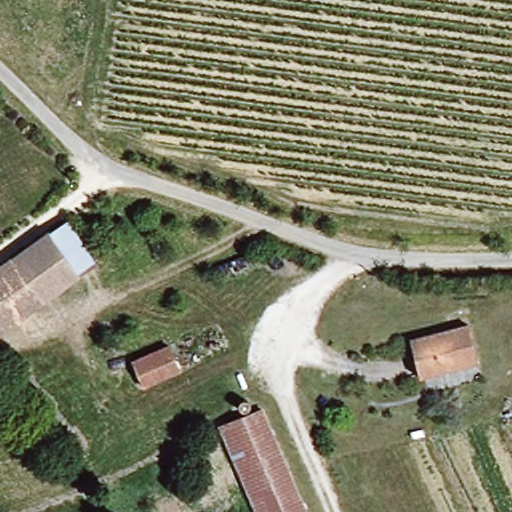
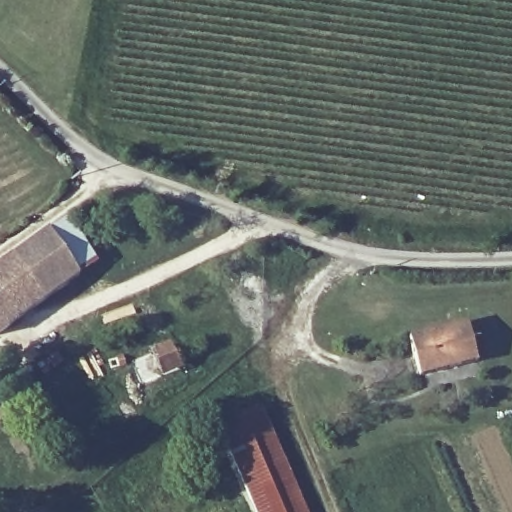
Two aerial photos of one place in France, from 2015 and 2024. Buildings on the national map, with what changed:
unchanged [(80,281),(0,332),(0,265),(48,233),(80,281)]
unchanged [(405,335),(465,323),(473,361),(413,373),(405,335)]
unchanged [(143,382),(132,361),(168,344),(179,365),(143,382)]
unchanged [(261,410),(305,512),(255,512),(218,429),(261,410)]

